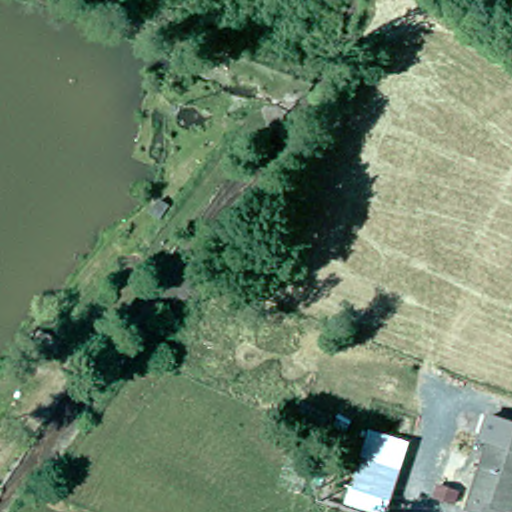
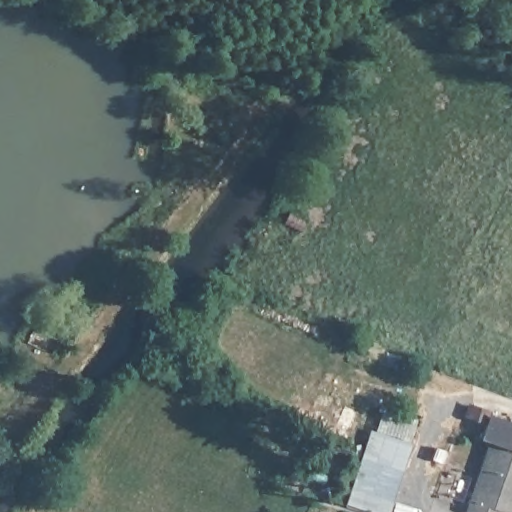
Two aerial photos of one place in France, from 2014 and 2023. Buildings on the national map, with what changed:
unchanged [(480,428),(512,441),(512,493),(505,512),(460,512),(482,452),(472,449),(480,428)]
unchanged [(352,487),(362,458),(395,469),(385,499),(352,487)]

